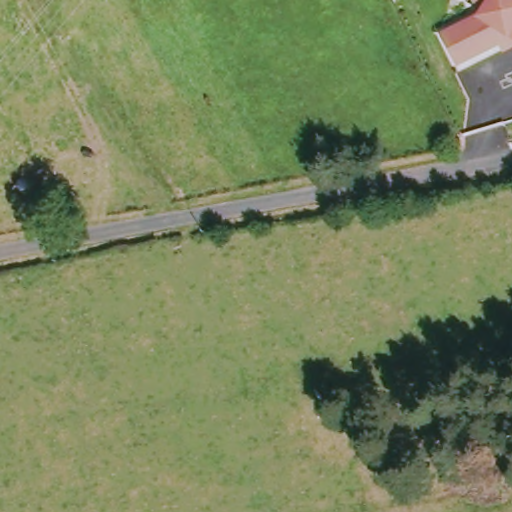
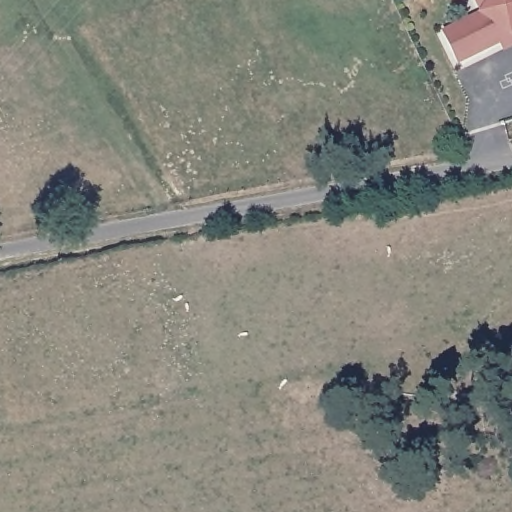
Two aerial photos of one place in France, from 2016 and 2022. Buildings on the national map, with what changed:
unchanged [(444,34),(483,15),(471,4),(474,0),(512,0),(512,51),(504,54),(501,49),(460,68),(444,34)]

